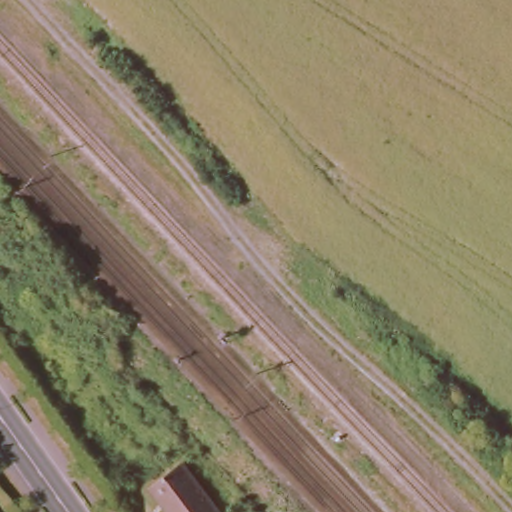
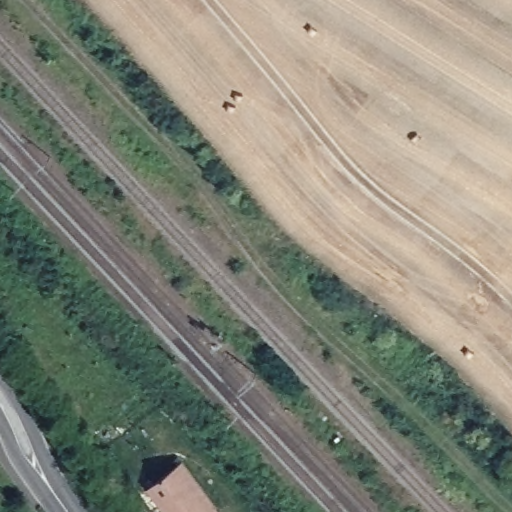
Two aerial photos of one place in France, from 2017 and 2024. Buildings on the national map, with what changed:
unchanged [(182,456),(220,510),(218,512),(169,512),(147,480),(182,456)]

